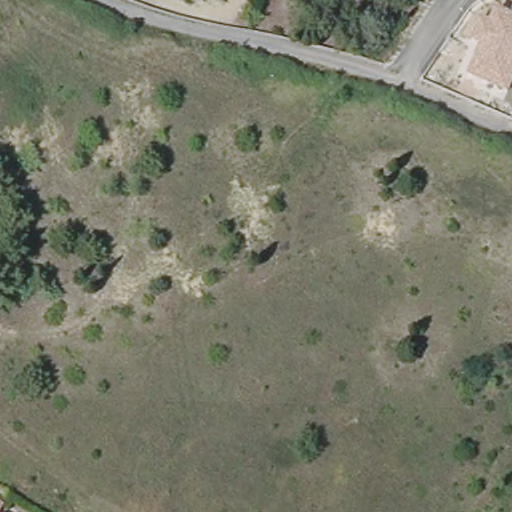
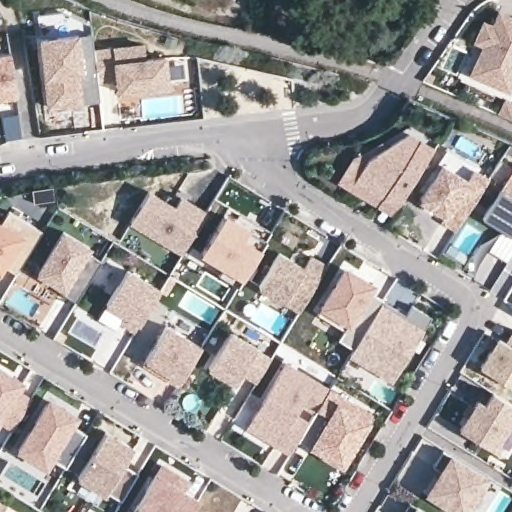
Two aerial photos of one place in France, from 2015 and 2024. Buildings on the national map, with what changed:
unchanged [(471,40),(483,18),(492,22),(499,10),(512,16),(512,85),(509,93),(467,77),(482,46),(471,40)]
new [(76,112),(75,106),(54,108),(47,39),(44,15),(69,13),(92,23),(93,34),(95,53),(98,83),(100,103),(84,105),(85,111),(76,112)]
new [(145,47),(146,62),(167,60),(169,90),(120,95),(118,82),(98,83),(95,53),(145,47)]
new [(11,56),(17,96),(0,99),(0,57),(11,56)]
new [(369,161),(404,135),(433,153),(397,211),(366,191),(359,202),(338,189),(359,154),(369,161)]
new [(440,169),(466,185),(472,175),(486,184),(455,235),(440,226),(444,220),(419,204),(440,169)]
new [(512,240),(481,222),(506,182),(512,172),(512,240)]
new [(149,195),(174,211),(181,200),(206,216),(180,258),(129,227),(149,195)]
new [(228,210),(271,236),(236,292),(216,279),(221,271),(199,257),(228,210)]
new [(8,212),(42,233),(15,277),(3,269),(0,272),(0,273),(0,226),(8,212)]
new [(63,233),(89,248),(86,253),(101,262),(75,304),(60,295),(63,291),(37,275),(63,233)]
new [(276,255),(302,271),(308,261),(325,271),(298,316),(255,289),(276,255)]
new [(128,272),(160,292),(135,334),(120,324),(124,317),(107,306),(128,272)]
new [(342,274),(369,291),(367,295),(382,304),(381,305),(351,353),(336,344),(342,335),(314,318),(318,312),(342,274)]
new [(381,305),(395,314),(404,320),(410,310),(429,322),(390,386),(347,359),(351,353),(381,305)]
new [(166,329),(200,350),(176,388),(142,367),(166,329)]
new [(228,336),(255,352),(253,354),(268,363),(254,386),(240,376),(233,387),(206,370),(228,336)]
new [(503,350),(512,337),(512,394),(478,372),(495,345),(503,350)]
new [(284,366),(326,393),(313,416),(300,407),(293,418),(306,426),(295,444),(287,457),(273,449),(244,431),(250,422),(284,366)]
new [(20,383),(15,393),(29,401),(8,435),(0,430),(0,370),(20,383)]
new [(330,463),(309,450),(308,452),(295,444),(306,426),(313,416),(326,393),(369,419),(344,460),(339,469),(330,463)]
new [(473,411),(477,413),(481,407),(489,412),(497,400),(512,408),(512,432),(497,456),(463,435),(471,422),(467,420),(473,411)]
new [(47,401),(75,418),(70,427),(85,436),(63,470),(49,461),(43,470),(16,452),(47,401)]
new [(103,435),(131,452),(122,467),(136,476),(118,503),(104,495),(103,497),(75,479),(103,435)]
new [(438,469),(447,455),(490,481),(471,512),(445,512),(429,502),(446,475),(438,469)]
new [(189,484),(187,489),(201,497),(192,512),(133,512),(162,467),(189,484)]
unchanged [(10,500),(9,503),(3,512),(0,512),(0,494),(10,500)]
new [(415,512),(403,512),(406,507),(415,512)]

